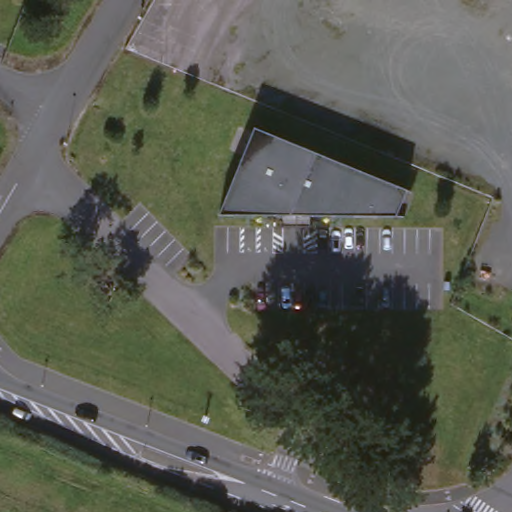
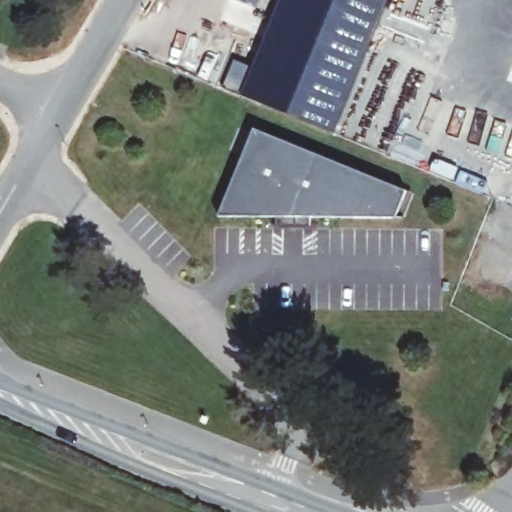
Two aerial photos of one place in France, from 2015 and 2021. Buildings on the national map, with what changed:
new [(241,93),(222,85),(233,60),(251,66),(279,0),(387,0),(332,132),(241,93)]
unchanged [(410,194),(399,221),(315,220),(315,230),(315,231),(279,231),(279,220),(220,219),(234,184),(255,131),(410,194)]

